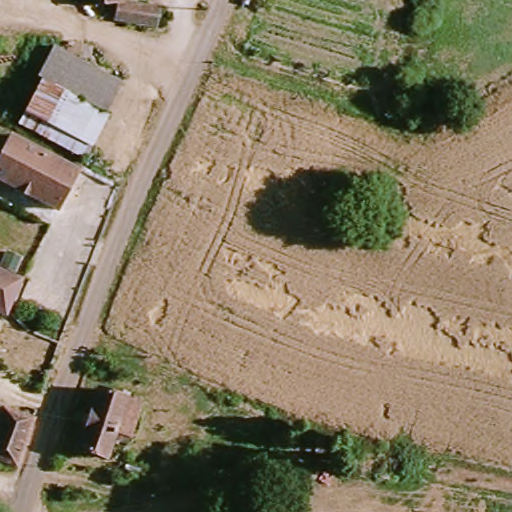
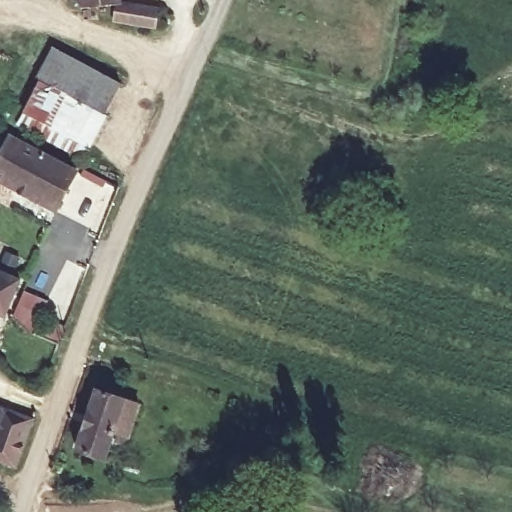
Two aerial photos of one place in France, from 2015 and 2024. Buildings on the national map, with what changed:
unchanged [(83,0),(118,0),(119,6),(84,11),(83,0)]
unchanged [(163,0),(165,16),(128,22),(125,5),(159,0),(163,0)]
unchanged [(15,123),(52,48),(122,84),(83,161),(15,123)]
unchanged [(75,170),(57,209),(0,184),(0,155),(8,138),(75,170)]
unchanged [(8,279),(0,302),(0,276),(8,279)]
unchanged [(102,463),(73,451),(98,388),(142,405),(130,436),(115,430),(102,463)]
unchanged [(3,412),(30,422),(15,466),(0,461),(0,420),(3,412)]

